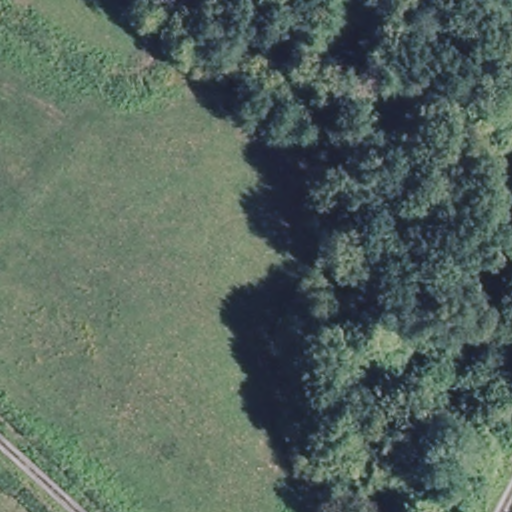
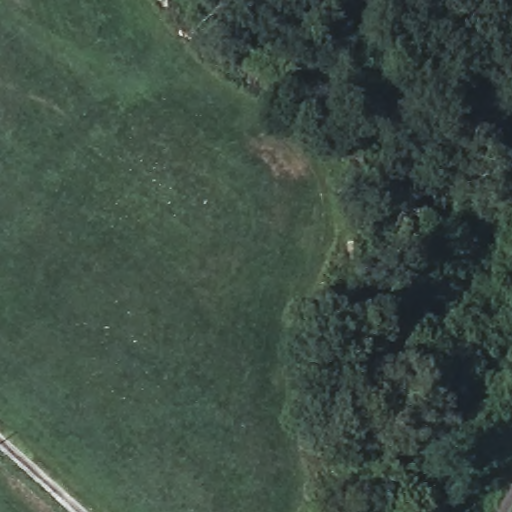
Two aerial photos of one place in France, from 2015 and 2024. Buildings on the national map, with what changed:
unchanged [(330,512),(320,512),(324,507),(330,512)]

